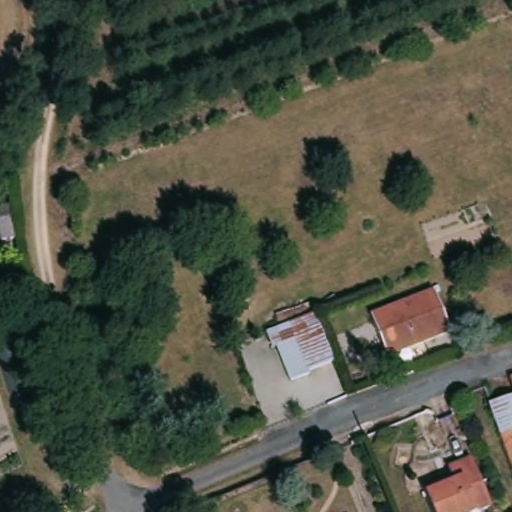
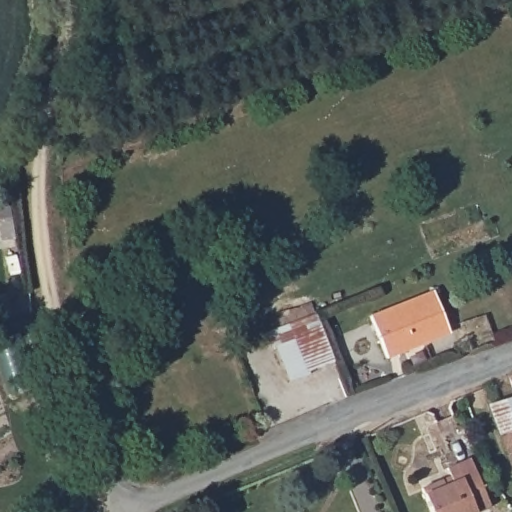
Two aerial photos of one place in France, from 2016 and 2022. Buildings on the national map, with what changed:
unchanged [(390,358),(374,320),(435,295),(450,327),(452,333),(390,358)]
unchanged [(336,363),(298,378),(285,346),(276,350),(270,331),(317,313),(336,363)]
unchanged [(512,399),(512,458),(492,407),(512,399)]
unchanged [(494,508),(486,512),(434,512),(425,491),(445,482),(455,477),(451,470),(473,460),(494,508)]

